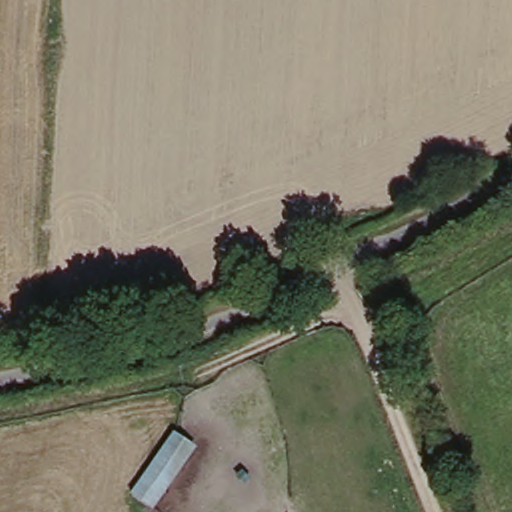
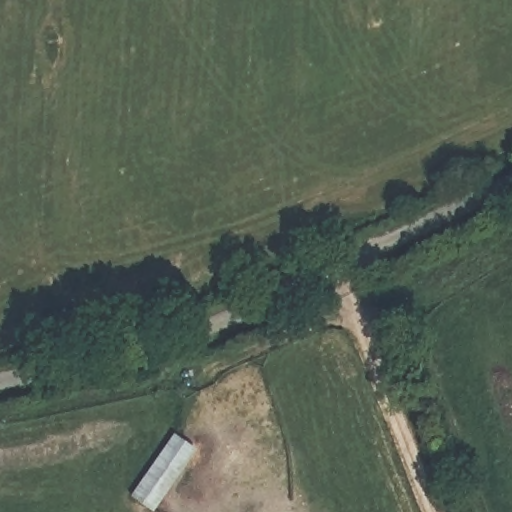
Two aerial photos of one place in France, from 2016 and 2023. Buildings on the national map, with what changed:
unchanged [(132,497),(175,432),(200,448),(155,512),(132,497)]

